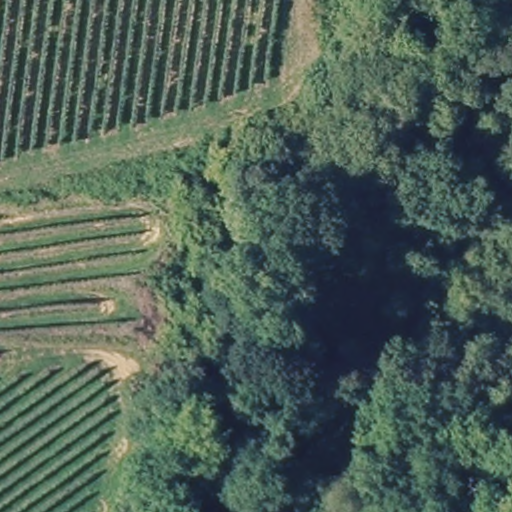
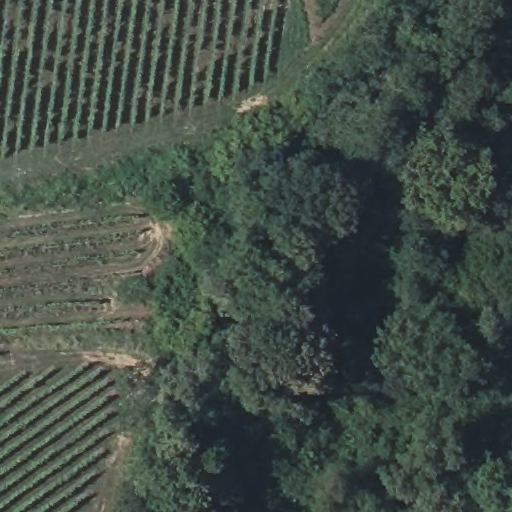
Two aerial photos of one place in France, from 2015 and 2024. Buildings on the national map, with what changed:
[]

